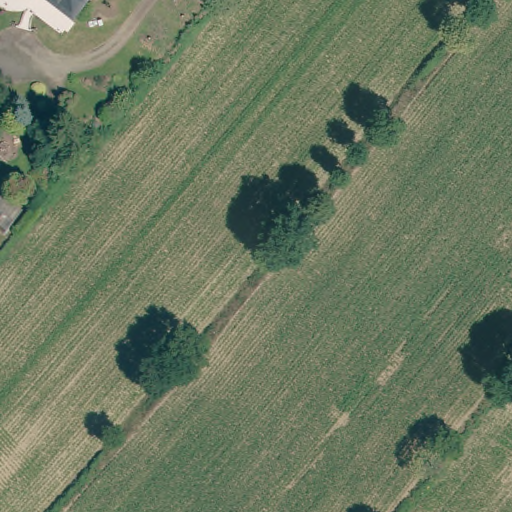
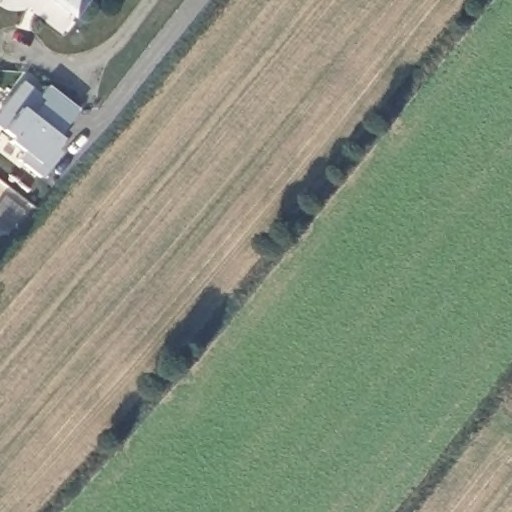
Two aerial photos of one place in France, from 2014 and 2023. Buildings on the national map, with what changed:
unchanged [(74,17),(52,0),(87,0),(74,17)]
new [(21,84),(39,96),(47,86),(77,109),(54,139),(56,141),(51,149),(57,154),(40,178),(17,162),(24,154),(9,143),(11,138),(0,129),(0,112),(21,84)]

